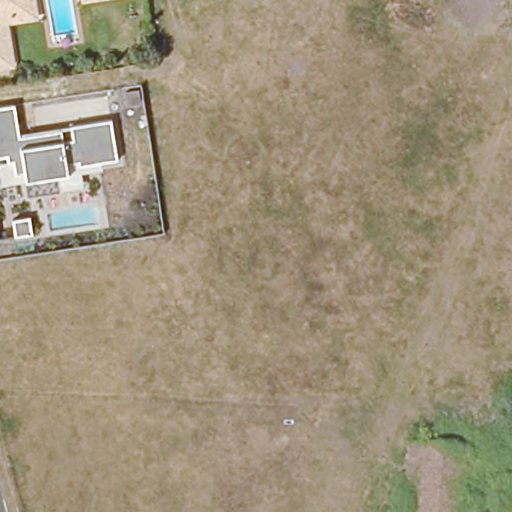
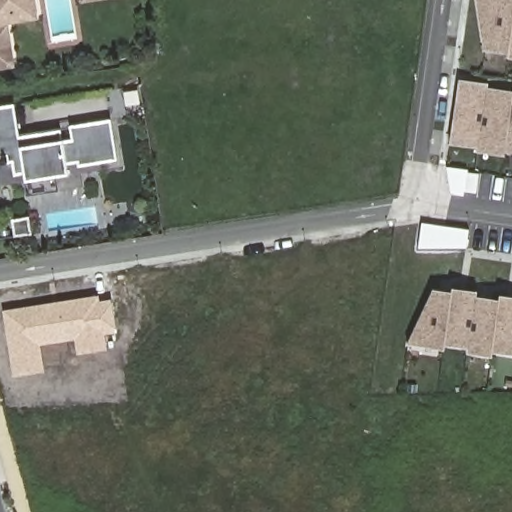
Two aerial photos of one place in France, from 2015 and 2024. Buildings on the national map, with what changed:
unchanged [(0,26),(0,0),(28,0),(31,21),(15,24),(0,26)]
unchanged [(86,0),(103,0),(86,3),(86,0)]
new [(512,0),(512,60),(508,60),(508,57),(481,53),(475,0),(512,0)]
unchanged [(15,68),(0,70),(0,26),(9,25),(15,68)]
new [(504,156),(478,152),(478,148),(450,144),(459,79),(488,83),(487,87),(512,91),(512,153),(505,152),(504,156)]
unchanged [(102,170),(81,174),(83,187),(59,191),(28,196),(27,182),(2,185),(0,169),(0,163),(8,162),(7,156),(0,157),(0,107),(15,105),(19,136),(61,129),(64,141),(74,140),(72,126),(111,120),(117,160),(101,162),(102,170)]
new [(469,230),(466,249),(418,249),(421,223),(469,230)]
new [(494,351),(468,347),(469,342),(447,339),(446,343),(413,338),(435,292),(452,293),(453,289),(477,292),(477,298),(500,301),(500,296),(512,297),(512,347),(494,345),(494,351)]
new [(99,296),(99,301),(110,300),(117,333),(105,336),(107,350),(77,355),(75,340),(41,346),(45,373),(13,377),(3,311),(99,296)]
demolished [(457,512),(400,512),(408,448),(463,454),(457,512)]
demolished [(495,510),(495,488),(512,487),(512,512),(463,512),(463,511),(495,510)]

